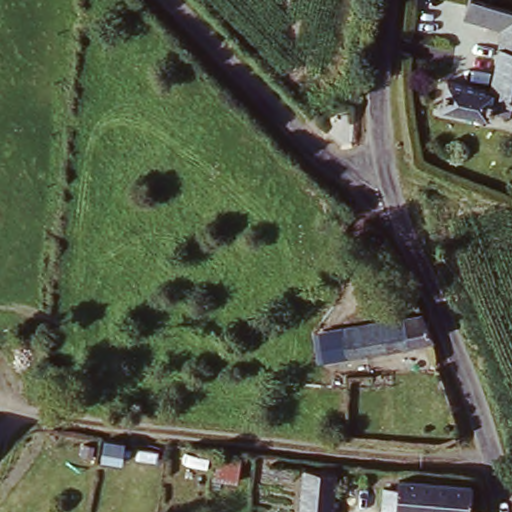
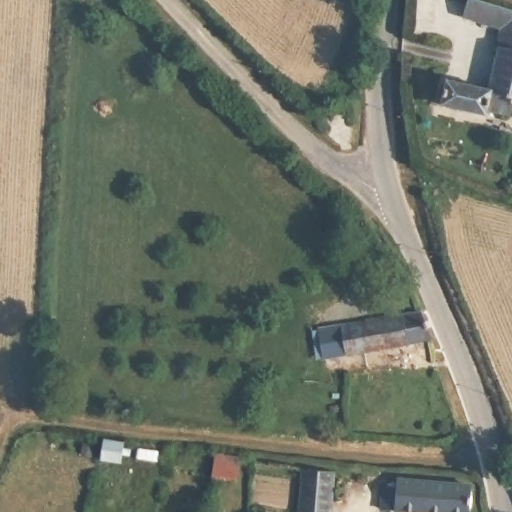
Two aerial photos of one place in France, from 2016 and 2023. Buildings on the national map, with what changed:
unchanged [(512,8),(512,113),(490,109),(488,112),(442,103),(447,77),(491,86),(504,25),(465,13),(466,0),(488,0),(512,8)]
unchanged [(347,353),(343,324),(421,310),(434,335),(347,353)]
unchanged [(125,465),(106,462),(109,439),(129,441),(125,465)]
unchanged [(242,477),(219,476),(221,452),(244,454),(242,477)]
unchanged [(331,512),(302,512),(305,470),(336,473),(331,512)]
unchanged [(476,478),(475,508),(386,498),(388,477),(402,478),(402,470),(476,478)]

